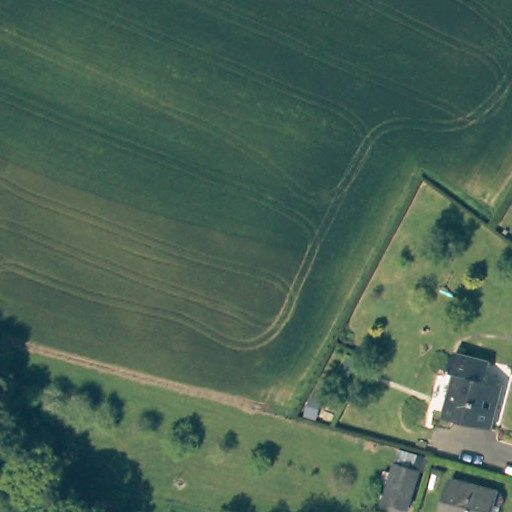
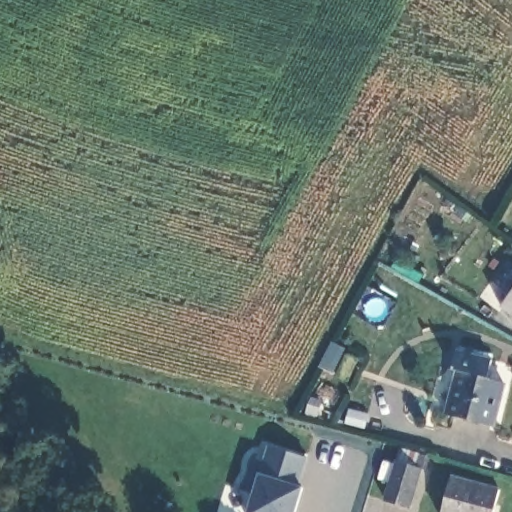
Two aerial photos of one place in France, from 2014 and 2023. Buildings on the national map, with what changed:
new [(503,284),(512,273),(512,292),(503,284)]
new [(502,309),(512,295),(512,316),(502,309)]
unchanged [(487,357),(483,376),(498,380),(493,403),(497,404),(492,423),(442,410),(456,350),(487,357)]
new [(298,486),(304,488),(297,512),(249,512),(254,494),(246,492),(253,471),(261,474),(269,446),(309,457),(298,486)]
unchanged [(382,501),(391,468),(394,452),(422,459),(418,474),(409,507),(382,501)]
unchanged [(499,489),(494,512),(440,512),(449,476),(499,489)]

